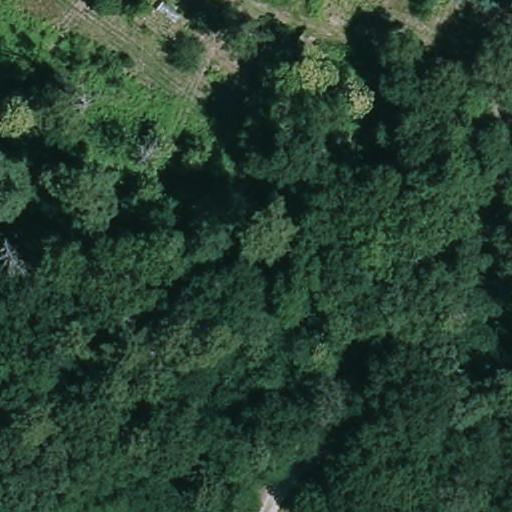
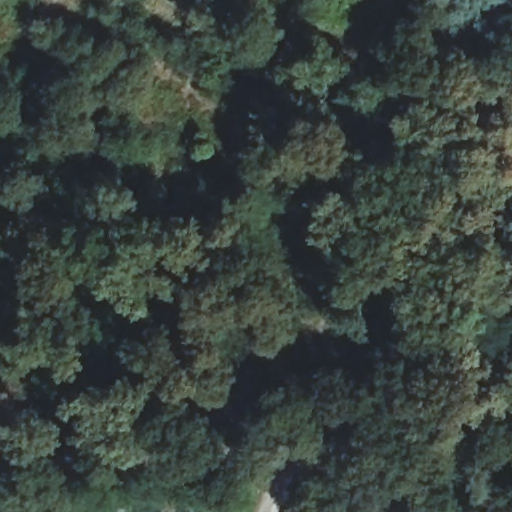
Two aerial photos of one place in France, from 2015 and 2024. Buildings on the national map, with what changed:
[]

